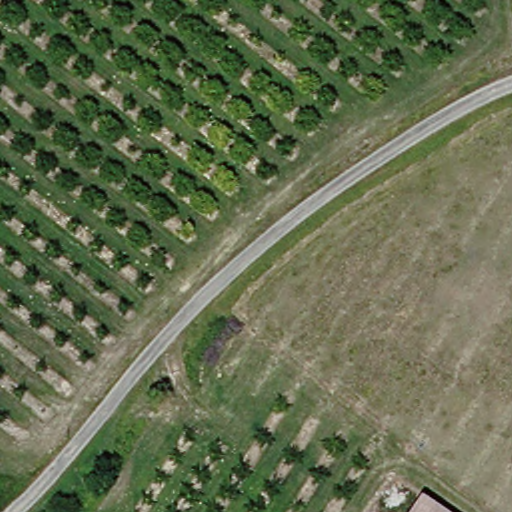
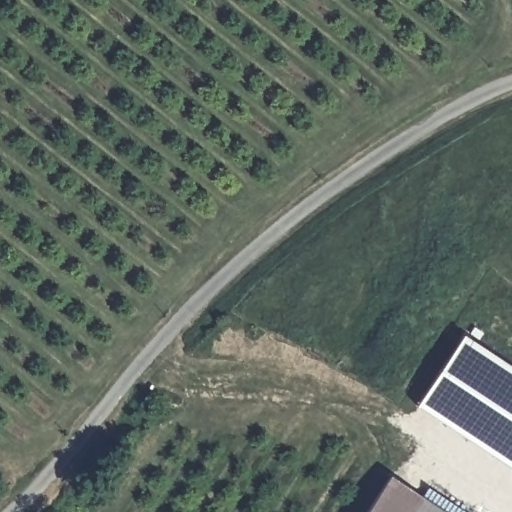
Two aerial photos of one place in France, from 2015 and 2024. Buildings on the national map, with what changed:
new [(462,332),(512,366),(512,468),(416,404),(462,332)]
new [(421,496),(412,512),(365,512),(389,474),(421,496)]
unchanged [(445,512),(412,512),(421,496),(445,512)]

